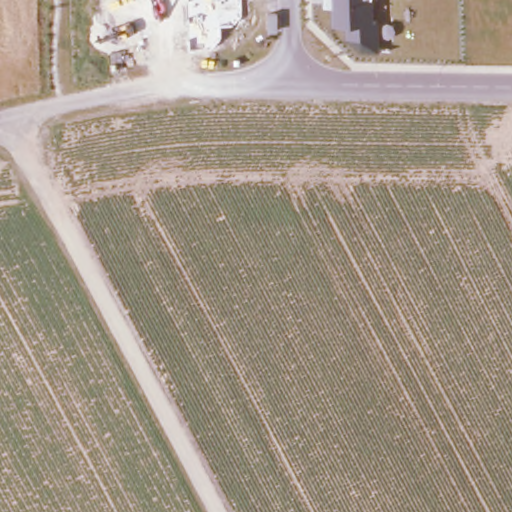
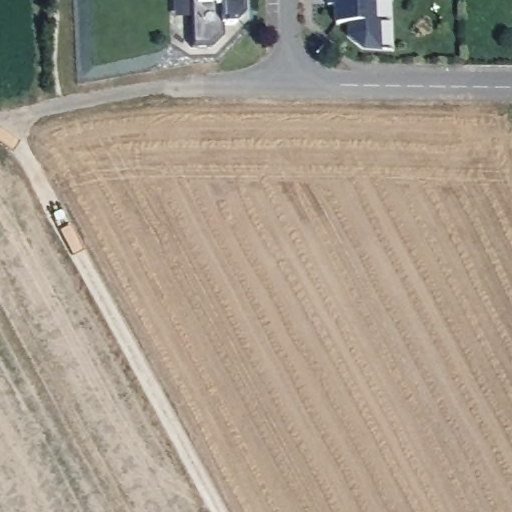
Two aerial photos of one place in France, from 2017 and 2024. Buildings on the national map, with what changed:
unchanged [(241,0),(242,13),(233,21),(222,22),(222,36),(211,46),(190,46),(188,0),(241,0)]
unchanged [(346,24),(333,24),(333,6),(325,6),(325,0),(373,0),(373,19),(381,21),(380,51),(361,51),(346,37),(346,24)]

